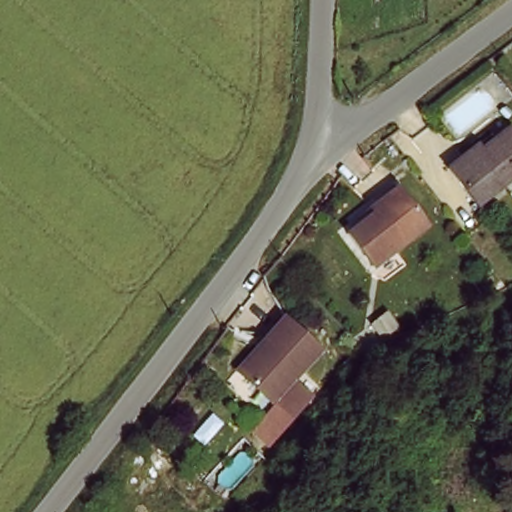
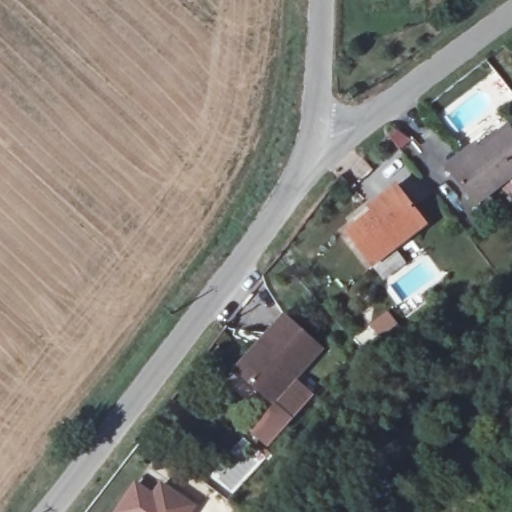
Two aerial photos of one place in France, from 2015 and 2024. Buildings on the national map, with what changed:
unchanged [(485,150),(511,132),(512,134),(512,179),(478,205),(452,167),(483,146),(485,150)]
unchanged [(359,218),(402,186),(430,227),(376,267),(351,232),(362,223),(359,218)]
new [(400,329),(384,340),(371,324),(388,313),(400,329)]
unchanged [(319,345),(275,402),(236,371),(281,314),(319,345)]
new [(187,512),(116,512),(135,484),(153,496),(160,484),(191,505),(187,512)]

